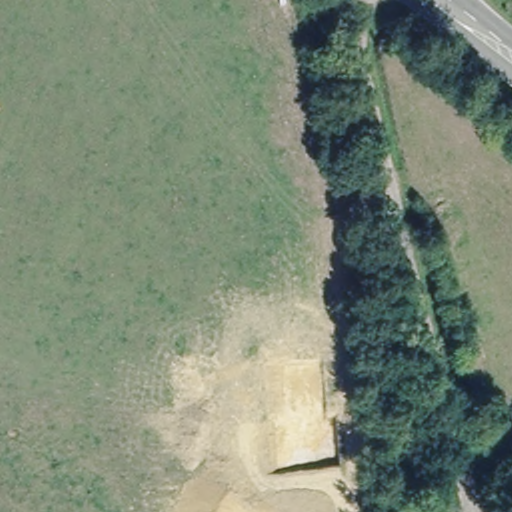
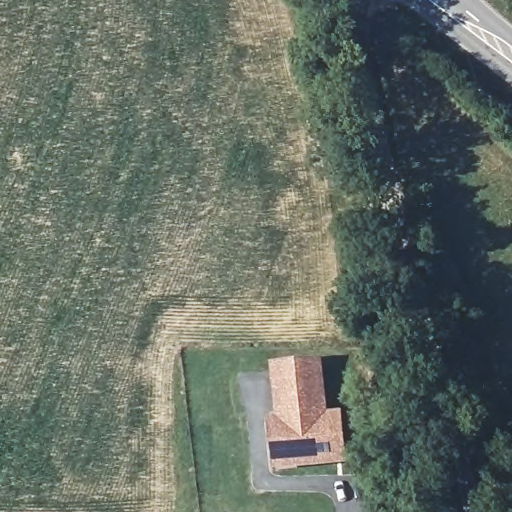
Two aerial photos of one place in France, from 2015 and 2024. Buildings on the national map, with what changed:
new [(281,427),(276,372),(318,368),(323,423),(329,422),(333,464),(275,470),(271,428),(281,427)]

